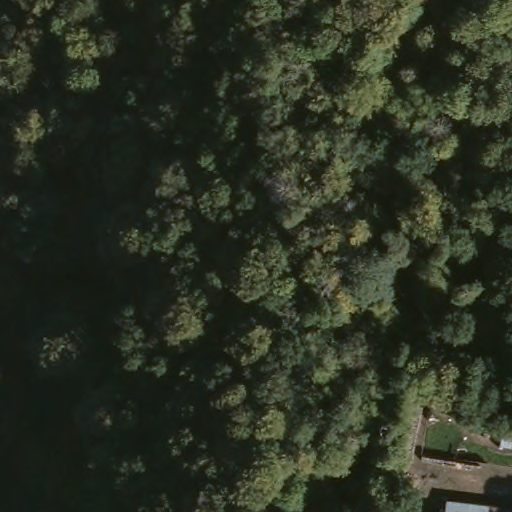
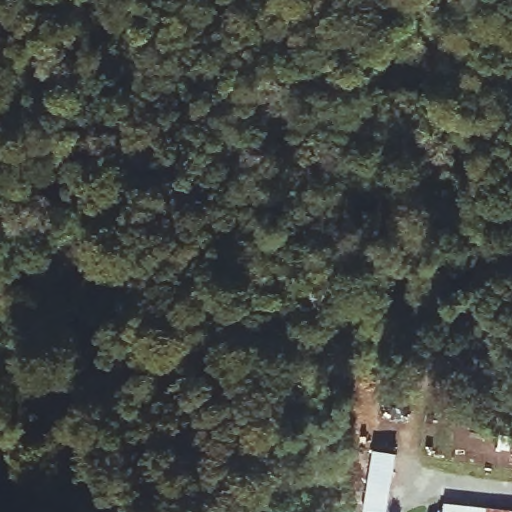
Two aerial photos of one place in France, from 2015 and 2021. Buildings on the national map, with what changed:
new [(390,512),(382,512),(366,509),(373,457),(398,460),(390,512)]
unchanged [(488,512),(438,512),(438,505),(488,508),(488,512)]

